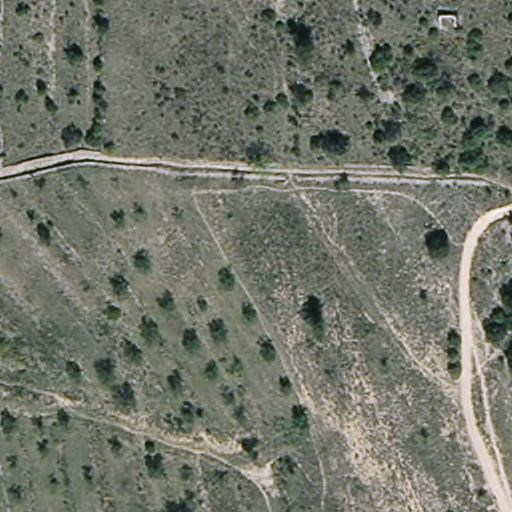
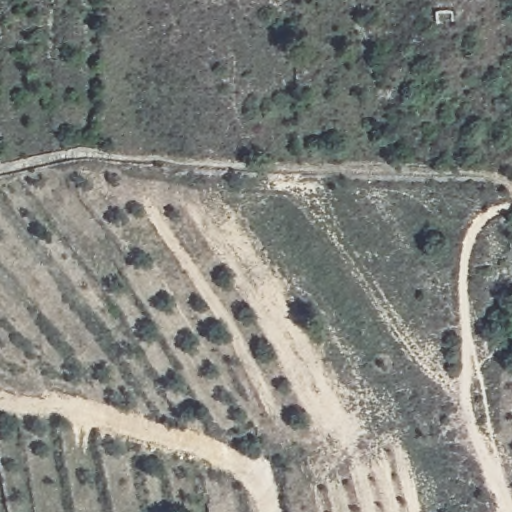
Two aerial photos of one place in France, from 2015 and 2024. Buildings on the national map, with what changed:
[]

